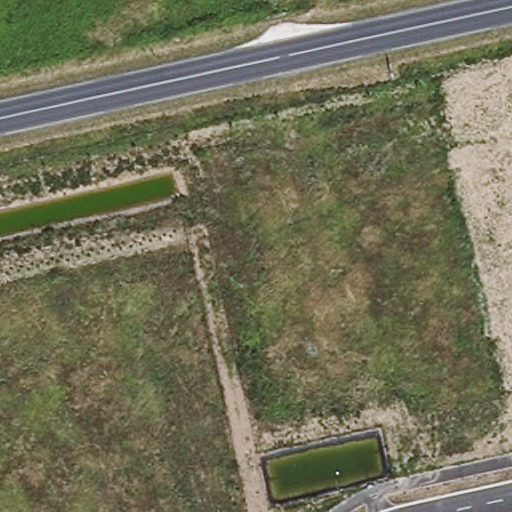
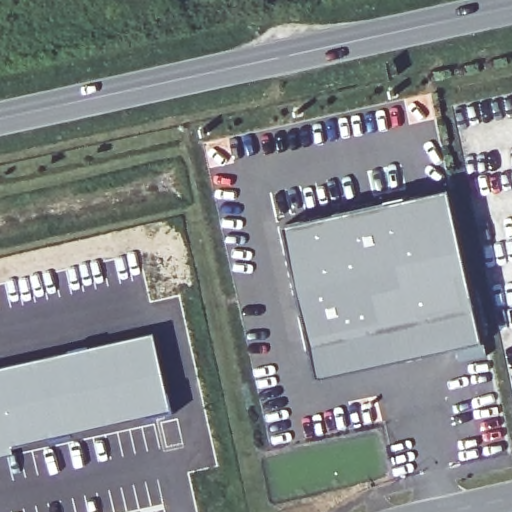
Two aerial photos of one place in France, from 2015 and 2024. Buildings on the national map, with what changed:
new [(321,377),(285,225),(449,190),(483,340),(321,377)]
new [(156,332),(174,410),(75,434),(15,447),(17,452),(0,456),(0,366),(156,332)]

